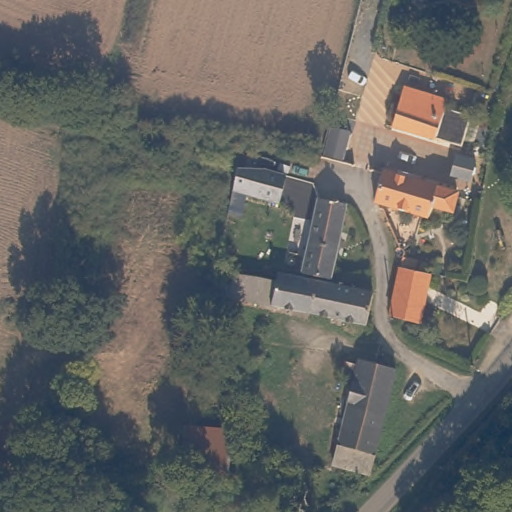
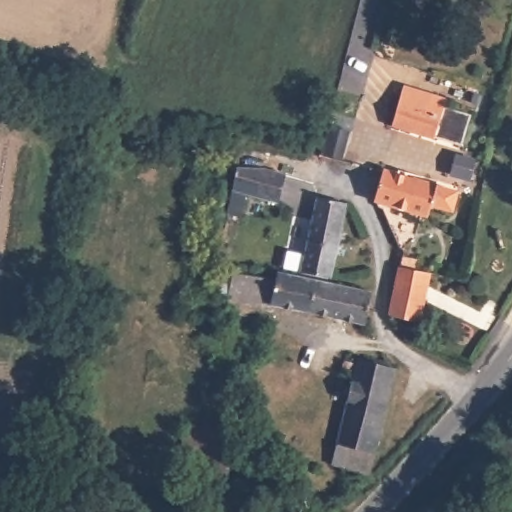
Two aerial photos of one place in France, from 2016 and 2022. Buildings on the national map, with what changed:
unchanged [(456,143),(387,125),(384,124),(396,84),(436,98),(434,110),(464,119),(456,143)]
unchanged [(469,156),(463,180),(443,175),(453,151),(469,156)]
unchanged [(381,193),(389,170),(391,164),(441,179),(443,175),(465,183),(460,202),(453,200),(449,212),(448,213),(403,201),(381,193)]
unchanged [(278,170),(282,170),(276,197),(233,189),(237,167),(266,167),(278,170)]
unchanged [(318,200),(347,207),(347,208),(329,282),(303,276),(318,200)]
unchanged [(430,271),(420,320),(391,315),(390,312),(400,267),(400,266),(430,271)]
unchanged [(284,312),(214,297),(218,274),(277,286),(281,274),(316,281),(309,317),(284,312)]
unchanged [(316,281),(373,293),(371,311),(366,328),(309,317),(316,281)]
unchanged [(102,312),(95,345),(63,339),(68,306),(102,312)]
unchanged [(350,380),(336,375),(340,364),(354,367),(355,362),(392,371),(382,413),(343,404),(350,380)]
unchanged [(343,404),(382,413),(373,452),(333,443),(343,404)]
unchanged [(230,433),(225,486),(206,483),(175,479),(180,427),(230,433)]
unchanged [(327,469),(333,443),(373,452),(368,473),(364,477),(327,469)]

